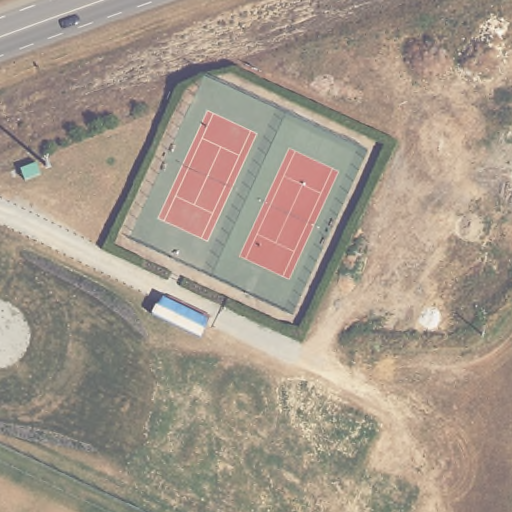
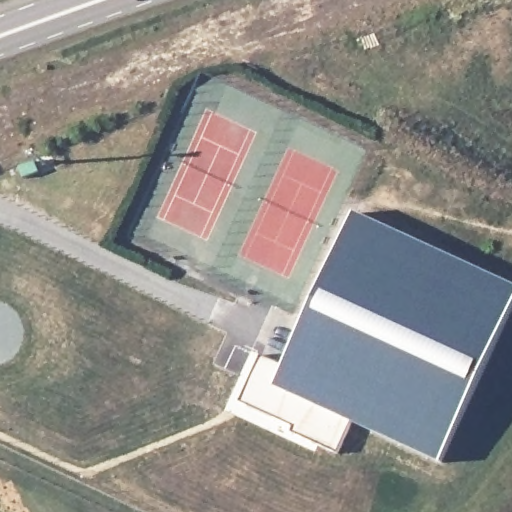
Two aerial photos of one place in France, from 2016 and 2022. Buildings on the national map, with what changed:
new [(262,354),(285,363),(355,212),(512,284),(512,312),(442,463),(354,422),(340,455),(290,433),(293,427),(240,403),(262,354)]

